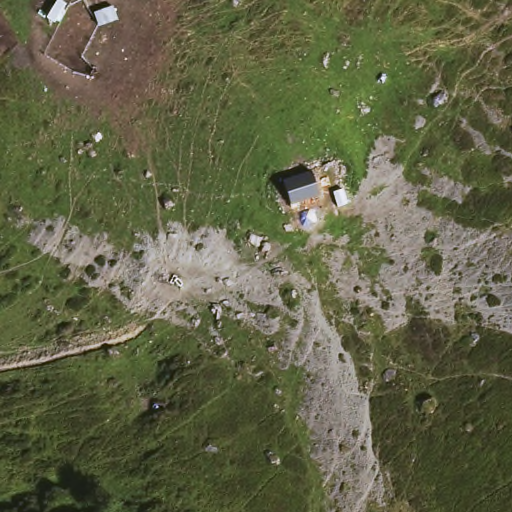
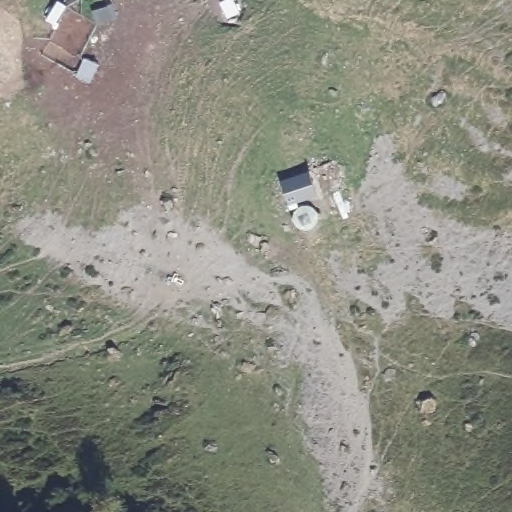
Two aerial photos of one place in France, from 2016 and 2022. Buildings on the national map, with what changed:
unchanged [(281,171),(295,167),(311,163),(318,191),(288,199),(281,171)]

